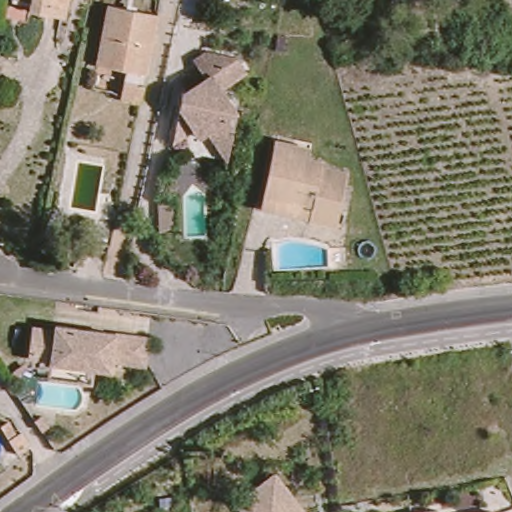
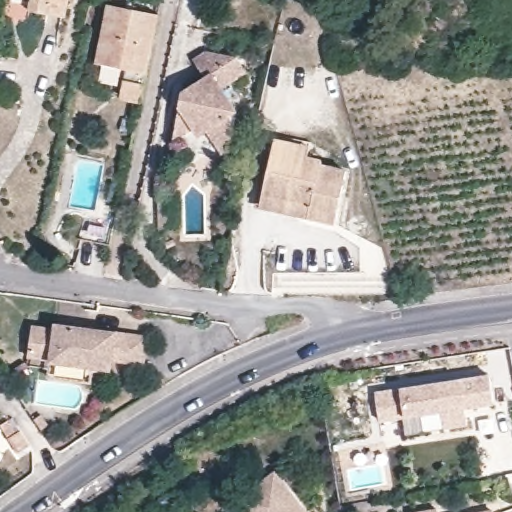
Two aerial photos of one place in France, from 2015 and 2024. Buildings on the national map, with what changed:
unchanged [(64,19),(29,12),(30,4),(17,0),(69,0),(64,19)]
unchanged [(145,103),(125,99),(130,71),(102,65),(113,6),(162,15),(145,103)]
unchanged [(188,138),(195,103),(198,92),(206,86),(223,74),(211,55),(221,47),(248,53),(260,69),(246,80),(256,94),(253,108),(242,155),(223,129),(215,134),(208,126),(188,138)]
unchanged [(269,203),(281,146),(316,153),(314,164),(327,166),(327,171),(351,176),(341,230),(314,225),(314,222),(266,213),(269,203)]
unchanged [(80,240),(86,208),(95,210),(97,204),(119,208),(112,246),(80,240)]
unchanged [(153,365),(119,361),(118,369),(38,360),(41,327),(63,330),(64,325),(84,327),(95,329),(156,337),(153,365)]
new [(488,376),(492,404),(463,409),(466,425),(443,429),(440,413),(378,422),(374,395),(488,376)]
unchanged [(273,478),(299,512),(240,512),(236,507),(273,478)]
unchanged [(499,512),(474,512),(497,508),(499,512)]
unchanged [(433,512),(427,512),(433,511),(433,512)]

